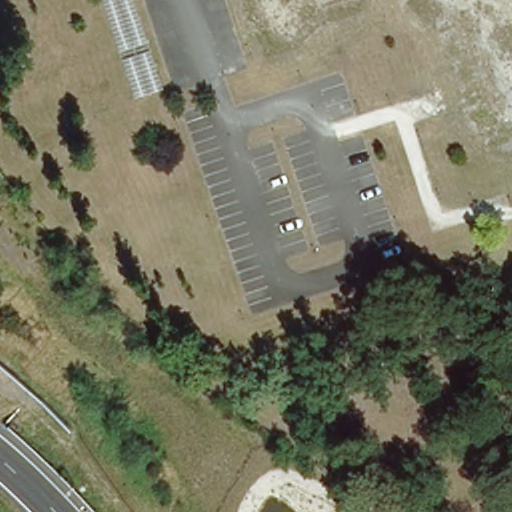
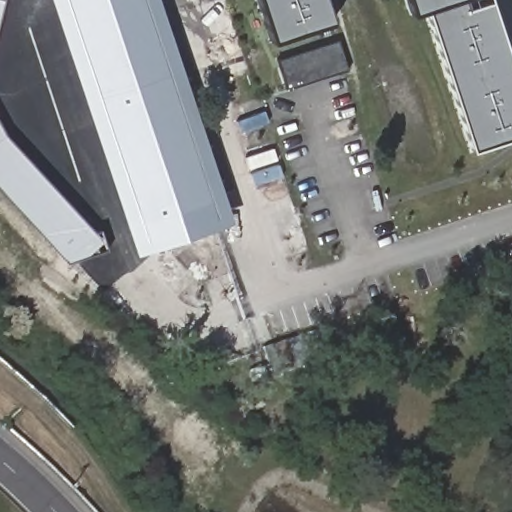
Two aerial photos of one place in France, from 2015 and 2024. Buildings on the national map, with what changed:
new [(0,0),(3,0),(0,12),(0,0)]
new [(136,255),(51,0),(158,0),(231,220),(136,255)]
new [(136,100),(103,0),(135,0),(165,90),(136,100)]
demolished [(258,47),(243,0),(298,0),(300,4),(303,16),(308,32),(258,47)]
new [(271,41),(257,0),(326,0),(333,21),(271,41)]
new [(472,151),(426,10),(411,14),(406,0),(491,0),(512,62),(512,138),(472,151)]
demolished [(487,139),(441,0),(497,0),(512,48),(512,132),(487,139)]
new [(339,39),(349,70),(287,90),(277,59),(339,39)]
new [(0,127),(4,135),(94,231),(100,229),(105,249),(67,262),(0,190),(0,127)]
new [(271,373),(264,350),(319,333),(326,357),(271,373)]

